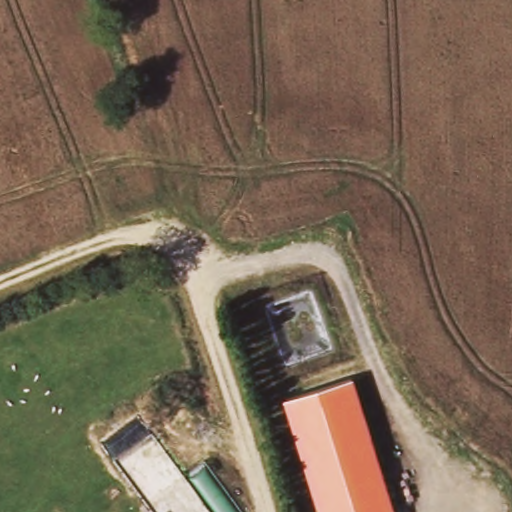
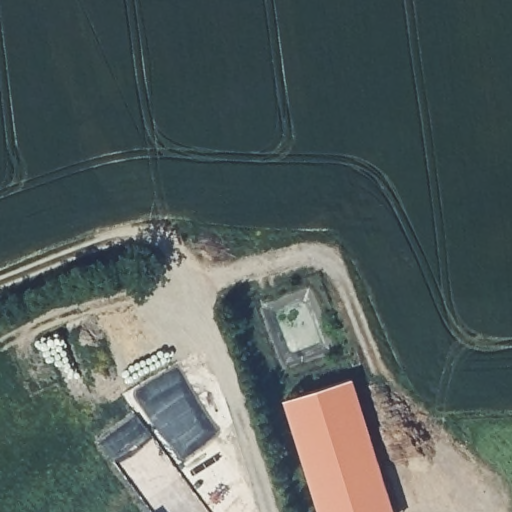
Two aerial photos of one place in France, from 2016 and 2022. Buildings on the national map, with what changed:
unchanged [(352,373),(396,512),(319,512),(284,398),(352,373)]

